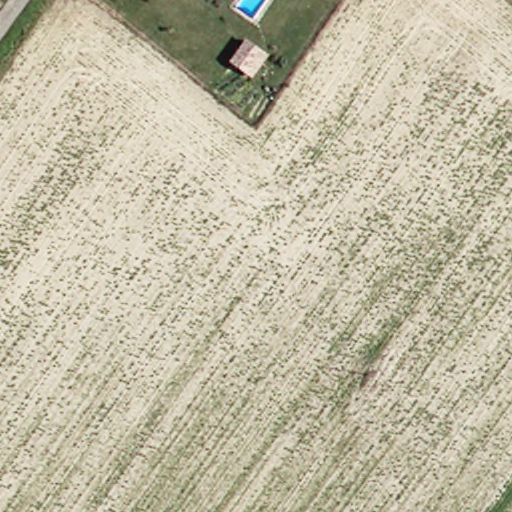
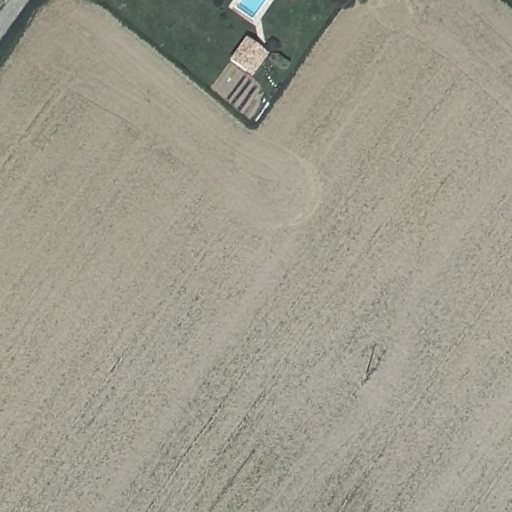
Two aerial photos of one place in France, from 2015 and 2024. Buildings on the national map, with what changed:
unchanged [(248,75),(241,71),(227,60),(241,40),(257,52),(260,55),(248,75)]

